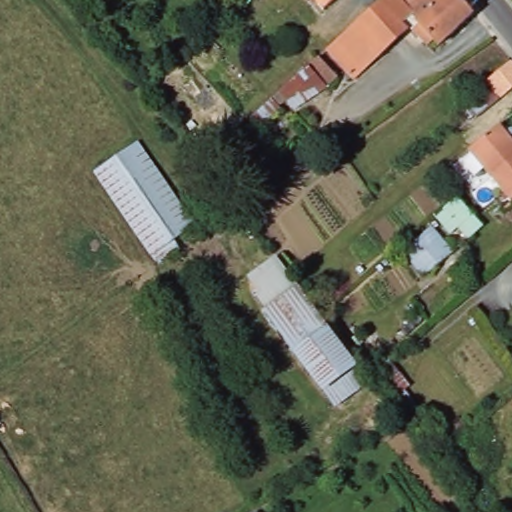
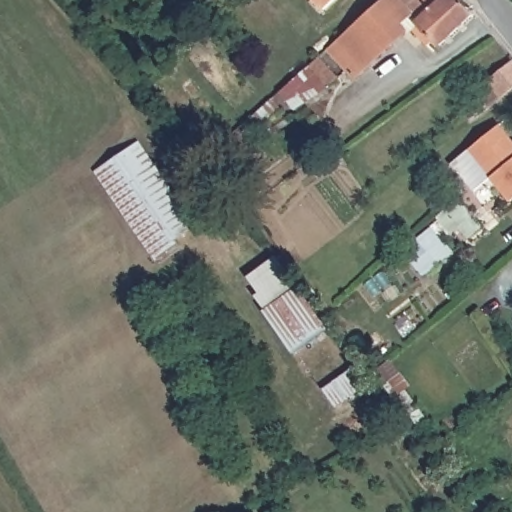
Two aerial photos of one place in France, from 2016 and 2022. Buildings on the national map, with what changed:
unchanged [(318,10),(309,0),(330,0),(318,10)]
unchanged [(472,15),(438,47),(432,39),(425,45),(412,32),(406,32),(353,79),(326,50),(371,9),(381,0),(460,0),(472,15)]
unchanged [(280,92),(287,85),(308,66),(318,57),(337,78),(327,87),(294,113),(286,105),(258,129),(247,118),(272,99),(280,92)]
unchanged [(512,59),(512,86),(500,95),(486,78),(512,58),(512,59)]
unchanged [(477,92),(488,105),(477,115),(467,101),(477,92)]
unchanged [(500,187),(468,149),(498,124),(512,141),(512,202),(500,187)]
unchanged [(139,144),(190,227),(149,253),(98,170),(139,144)]
unchanged [(225,154),(211,168),(205,161),(219,147),(225,154)]
unchanged [(468,240),(438,210),(457,192),(485,226),(468,240)]
unchanged [(437,267),(411,237),(428,222),(453,253),(437,267)]
unchanged [(322,393),(262,311),(254,296),(257,293),(247,276),(277,254),(301,288),(358,366),(370,385),(336,409),(322,393)]

